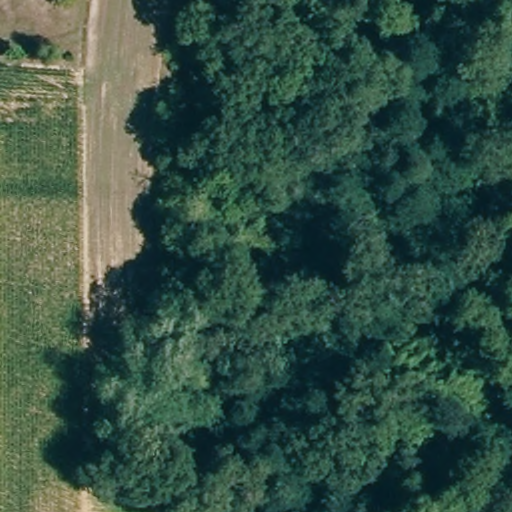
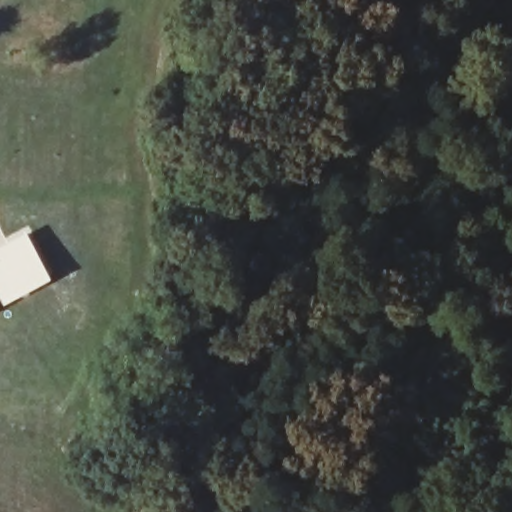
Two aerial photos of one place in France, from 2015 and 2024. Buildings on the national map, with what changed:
new [(55,282),(7,307),(0,295),(0,249),(29,235),(55,282)]

